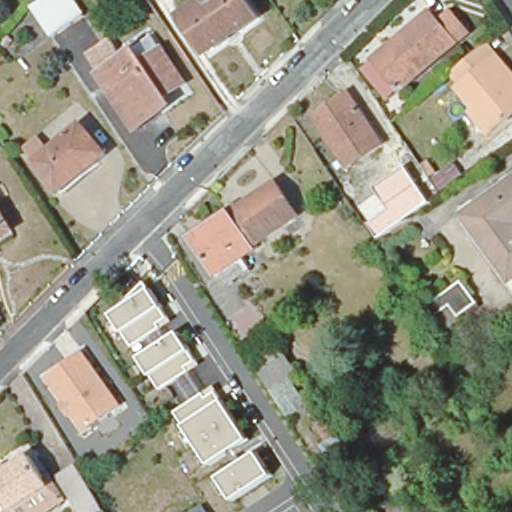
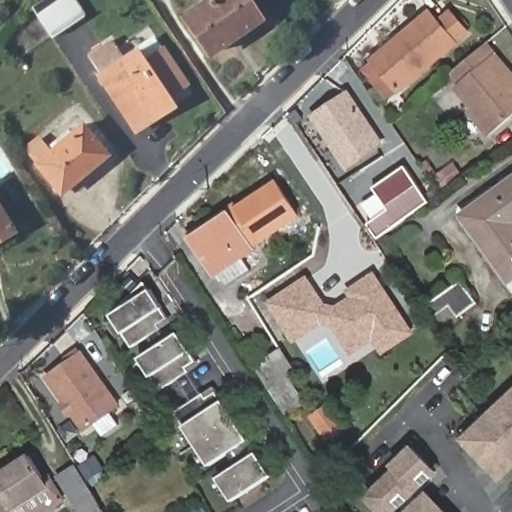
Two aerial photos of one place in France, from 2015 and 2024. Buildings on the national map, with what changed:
unchanged [(43,0),(72,0),(83,17),(51,37),(31,8),(43,0)]
unchanged [(207,54),(181,17),(206,0),(248,0),(259,17),(235,34),(228,39),(207,54)]
unchanged [(438,27),(451,17),(468,38),(397,94),(373,62),(396,44),(402,40),(430,17),(438,27)]
unchanged [(483,144),(464,122),(469,117),(450,95),(455,92),(446,82),(476,57),(481,54),(490,65),(511,90),(512,91),(512,121),(483,144)]
unchanged [(159,116),(133,133),(97,80),(133,55),(142,67),(160,55),(182,88),(160,103),(166,111),(159,116)]
unchanged [(310,122),(343,100),(376,150),(342,172),(310,122)]
unchanged [(58,196),(35,167),(82,129),(105,159),(58,196)]
unchanged [(419,167),(427,161),(435,174),(455,162),(466,177),(435,194),(419,167)]
unchanged [(375,243),(365,227),(384,214),(371,192),(403,171),(427,207),(375,243)]
unchanged [(260,240),(250,247),(229,216),(239,209),(238,207),(275,182),(299,217),(262,242),(260,240)]
unchanged [(460,221),(512,183),(512,285),(508,288),(460,221)]
unchanged [(193,242),(188,236),(226,211),(227,213),(229,216),(250,247),(251,249),(213,275),(193,242)]
unchanged [(0,250),(0,226),(10,243),(0,250)]
new [(349,296),(345,290),(375,271),(417,333),(383,356),(373,342),(352,356),(332,327),(322,325),(294,343),(266,302),(308,274),(327,302),(336,305),(349,296)]
unchanged [(460,277),(476,299),(442,324),(426,302),(460,277)]
unchanged [(169,321),(133,343),(126,332),(114,313),(151,290),(162,307),(169,321)]
unchanged [(201,365),(160,391),(153,376),(141,357),(180,332),(193,351),(201,365)]
unchanged [(84,432),(73,417),(69,421),(58,405),(63,402),(45,376),(82,349),(121,406),(84,432)]
unchanged [(282,355),(299,380),(266,402),(249,377),(282,355)]
unchanged [(209,462),(186,426),(176,411),(215,387),(224,402),(247,440),(209,462)]
new [(502,483),(459,440),(512,391),(512,474),(502,483)]
unchanged [(308,432),(325,421),(338,442),(321,453),(308,432)]
new [(440,473),(398,512),(379,512),(366,497),(394,469),(391,465),(412,444),(440,473)]
unchanged [(233,502),(217,478),(257,452),(272,476),(233,502)]
unchanged [(49,481),(52,477),(66,498),(44,512),(0,512),(0,472),(31,453),(49,481)]
unchanged [(80,462),(108,510),(104,512),(78,512),(56,477),(80,462)]
new [(449,512),(406,512),(429,491),(449,512)]
demolished [(413,512),(397,512),(406,504),(413,512)]
demolished [(375,512),(364,512),(371,507),(375,512)]

